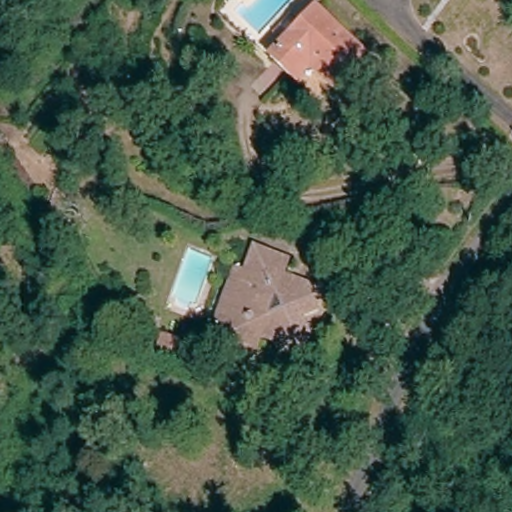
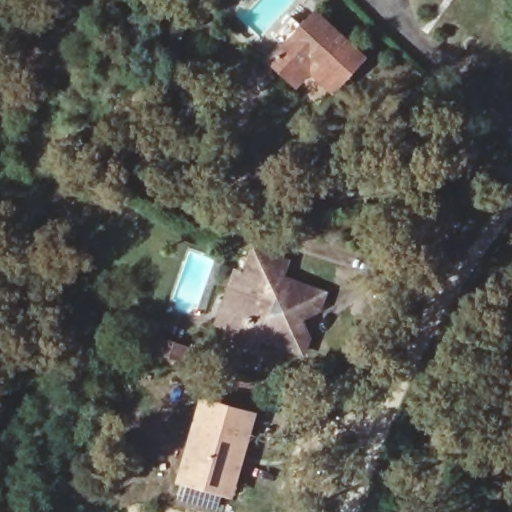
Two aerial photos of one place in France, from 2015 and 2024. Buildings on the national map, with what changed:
unchanged [(315,68),(300,82),(295,76),(276,55),(322,11),(366,60),(340,83),(334,89),(315,68)]
unchanged [(220,310),(226,294),(231,278),(242,281),(250,257),(282,268),(278,282),(321,296),(314,316),(309,333),(302,355),(260,343),(254,359),(234,354),(227,345),(227,343),(211,338),(220,310)]
new [(226,494),(183,483),(204,401),(255,415),(246,452),(234,496),(226,494)]

